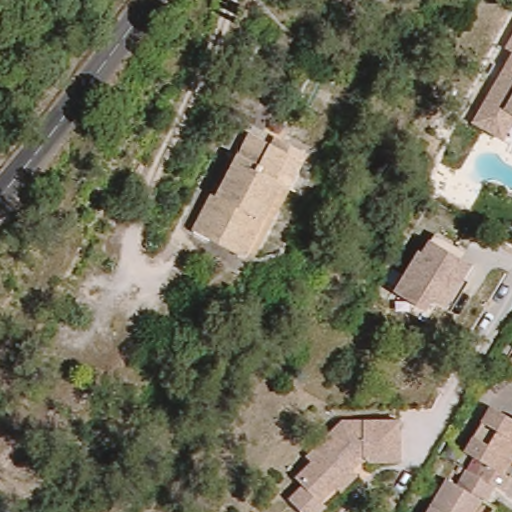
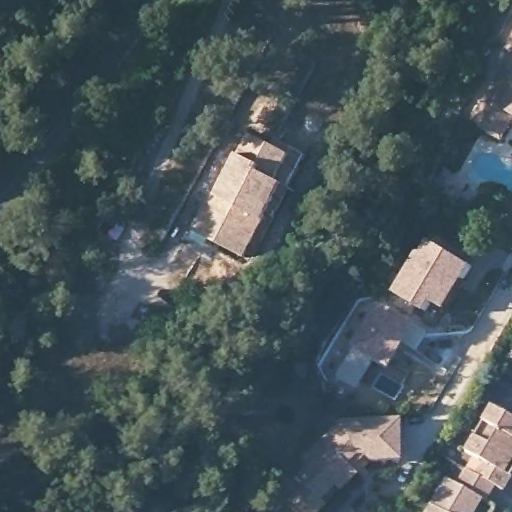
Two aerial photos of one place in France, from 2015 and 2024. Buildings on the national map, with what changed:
unchanged [(468,125),(509,54),(502,49),(512,33),(512,125),(500,142),(468,125)]
unchanged [(271,142),(291,152),(279,178),(288,182),(269,219),(248,260),(191,229),(210,191),(217,194),(249,131),(271,142)]
unchanged [(276,131),(313,150),(278,224),(269,219),(288,182),(279,178),(291,152),(271,142),(276,131)]
unchanged [(470,269),(437,319),(389,290),(424,238),(470,269)]
new [(326,360),(323,357),(355,304),(360,299),(369,297),(375,298),(415,328),(405,343),(392,364),(386,373),(381,370),(372,365),(354,391),(321,370),(326,360)]
unchanged [(512,493),(511,494),(504,490),(485,480),(492,466),(474,455),(500,410),(512,417),(512,493)]
unchanged [(404,465),(357,467),(316,512),(293,512),(282,501),(298,483),(293,478),(305,465),(300,459),(339,419),(405,421),(404,465)]
unchanged [(494,507),(491,505),(487,512),(441,512),(457,485),(467,490),(475,475),(485,480),(504,490),(494,507)]

